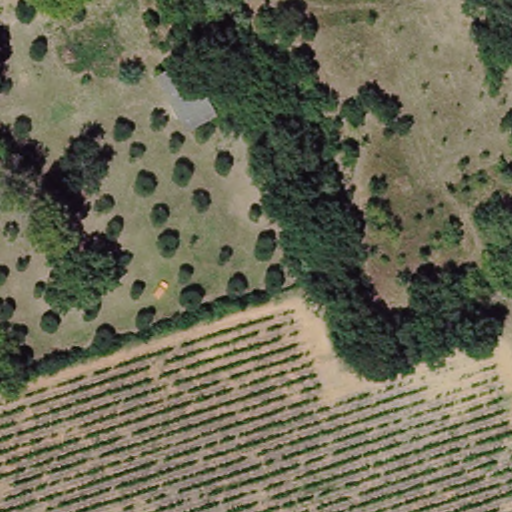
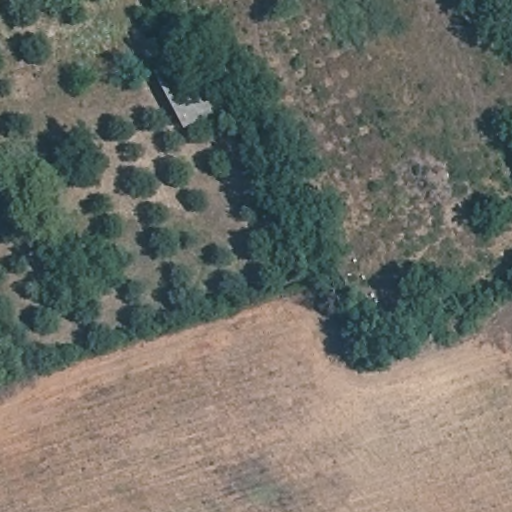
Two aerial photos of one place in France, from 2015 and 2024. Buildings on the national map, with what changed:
unchanged [(216,120),(186,135),(158,78),(190,62),(216,120)]

